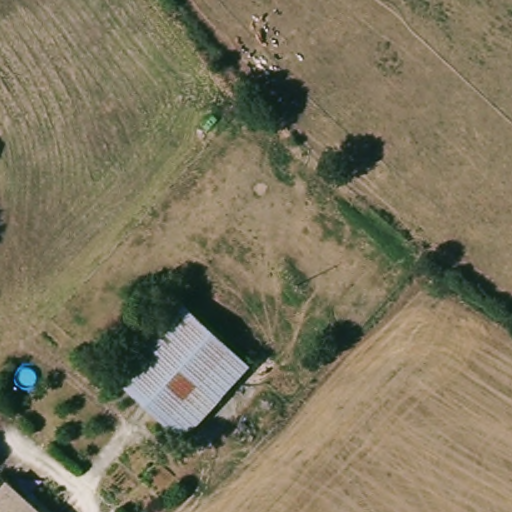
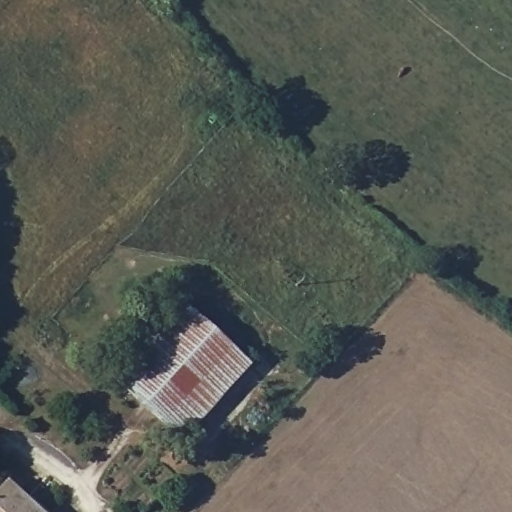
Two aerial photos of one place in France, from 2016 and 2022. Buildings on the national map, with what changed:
unchanged [(253,365),(183,443),(110,373),(178,298),(253,365)]
unchanged [(0,512),(0,490),(11,478),(47,512),(0,512)]

